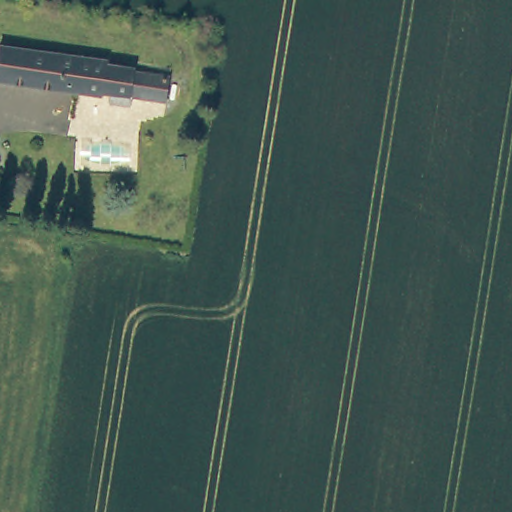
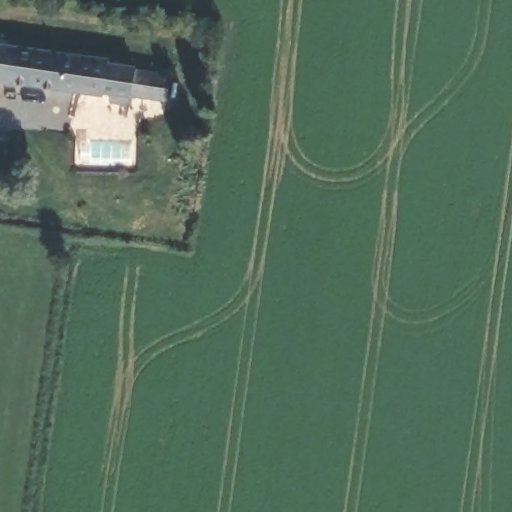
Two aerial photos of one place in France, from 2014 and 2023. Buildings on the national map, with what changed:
unchanged [(28,90),(0,85),(0,49),(34,52),(28,90)]
unchanged [(64,56),(58,94),(28,90),(34,52),(61,55),(64,56)]
unchanged [(58,94),(64,56),(105,62),(104,69),(169,79),(166,102),(129,97),(127,109),(107,105),(108,99),(99,97),(99,100),(58,94)]

